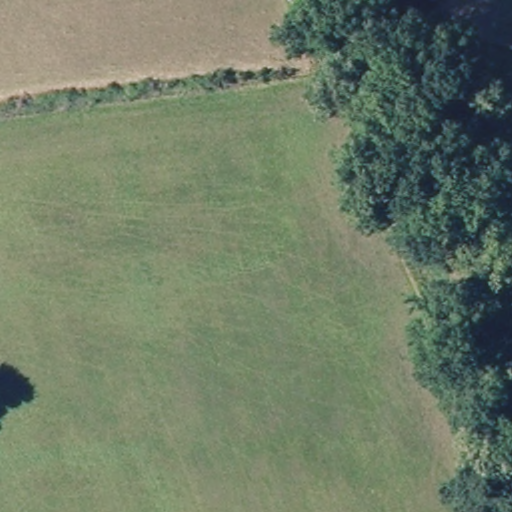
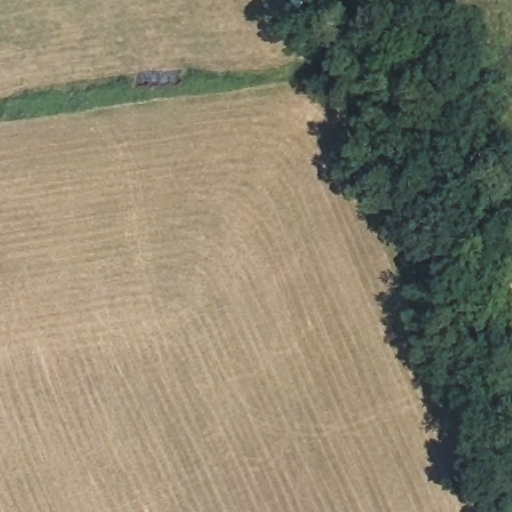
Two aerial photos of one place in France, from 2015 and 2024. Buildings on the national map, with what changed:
[]

